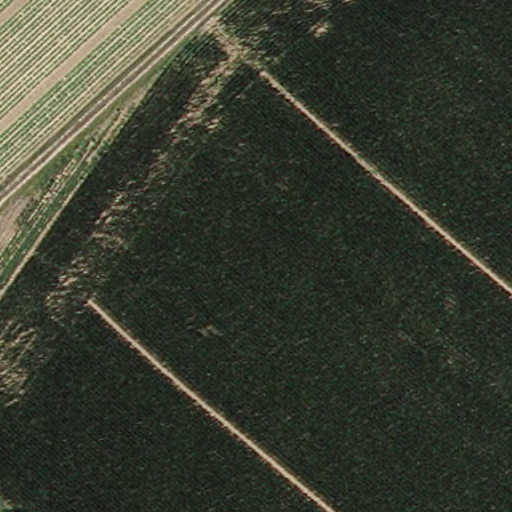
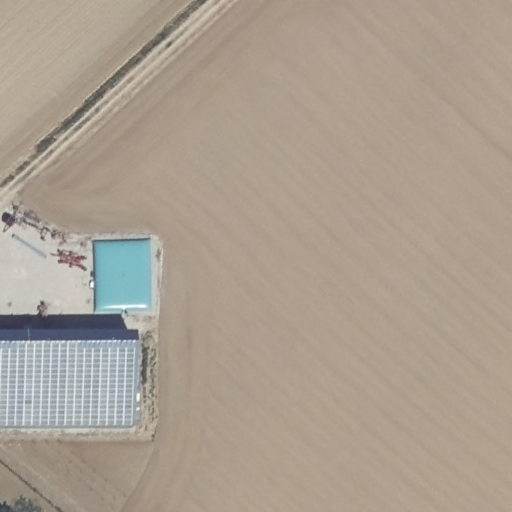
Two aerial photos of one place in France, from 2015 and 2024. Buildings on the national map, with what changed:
new [(0,430),(0,340),(131,339),(132,429),(0,430)]

